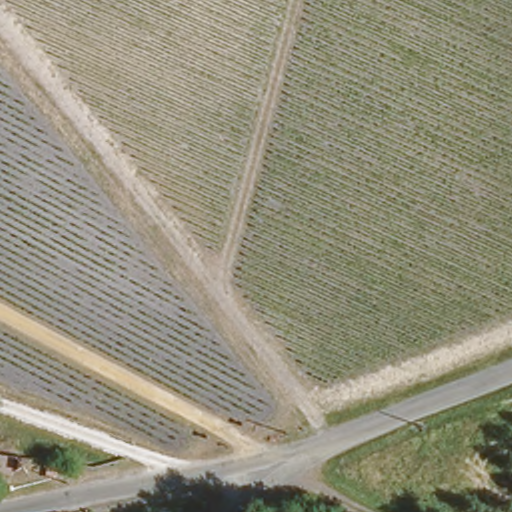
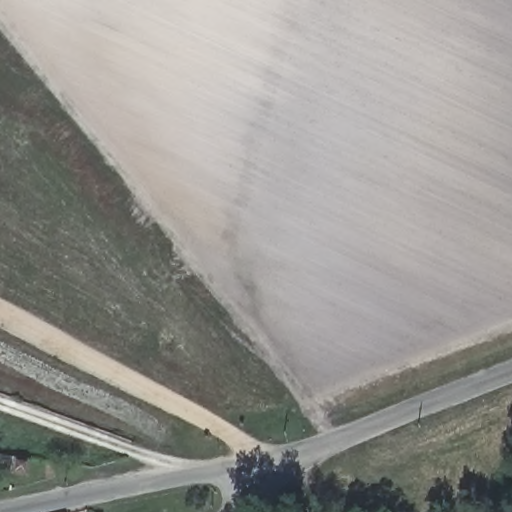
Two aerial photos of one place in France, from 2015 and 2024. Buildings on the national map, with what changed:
unchanged [(19,475),(5,473),(6,464),(0,463),(0,455),(7,457),(21,459),(19,475)]
unchanged [(61,512),(50,512),(60,510),(61,512)]

